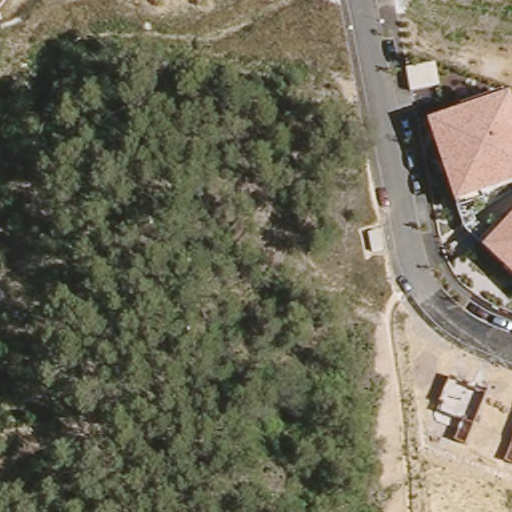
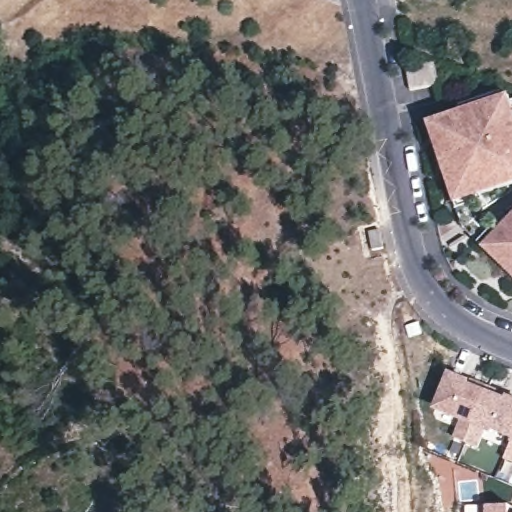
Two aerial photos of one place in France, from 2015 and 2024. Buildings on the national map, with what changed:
unchanged [(511,95),(512,100),(512,185),(455,204),(429,122),(511,95)]
unchanged [(512,219),(512,276),(485,248),(512,219)]
new [(512,398),(512,440),(485,429),(480,448),(454,437),(460,421),(434,410),(450,371),(512,398)]
new [(506,459),(512,443),(512,462),(506,459)]
new [(510,506),(512,507),(512,512),(481,512),(481,505),(510,506)]

